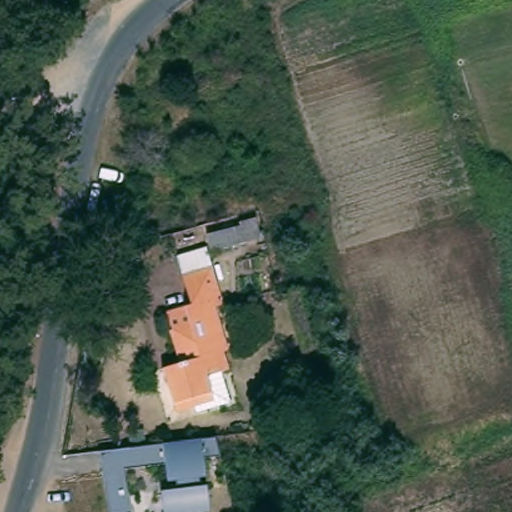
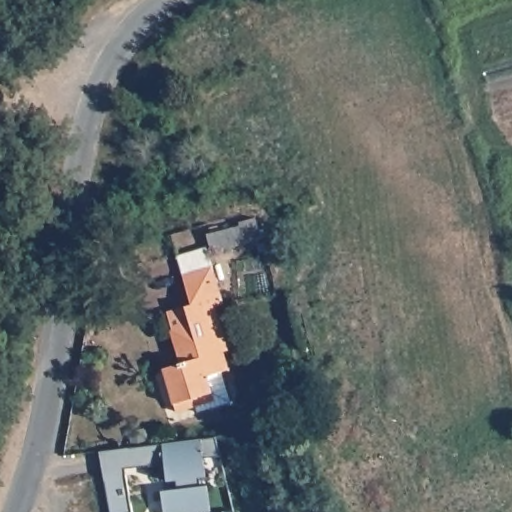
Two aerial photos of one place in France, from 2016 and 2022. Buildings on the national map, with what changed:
unchanged [(213,231),(245,221),(251,238),(218,248),(213,231)]
unchanged [(166,374),(182,369),(171,335),(175,335),(169,316),(193,309),(183,277),(215,268),(227,308),(219,310),(233,356),(228,357),(232,373),(211,379),(216,397),(197,403),(199,410),(179,416),(166,374)]
unchanged [(217,437),(219,453),(206,455),(209,475),(202,475),(203,486),(210,485),(212,512),(206,512),(167,512),(163,490),(178,488),(178,478),(170,479),(167,457),(127,465),(133,512),(112,512),(103,452),(217,437)]

